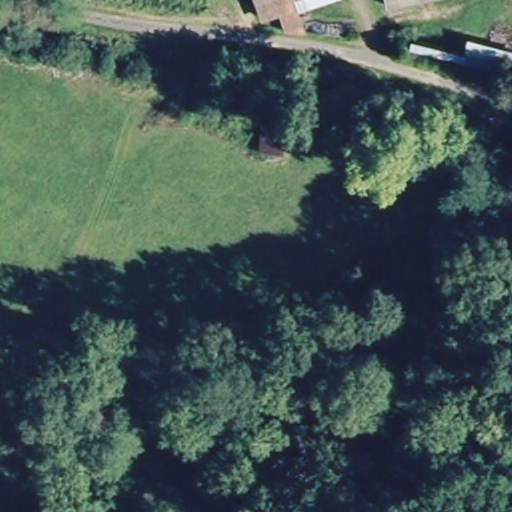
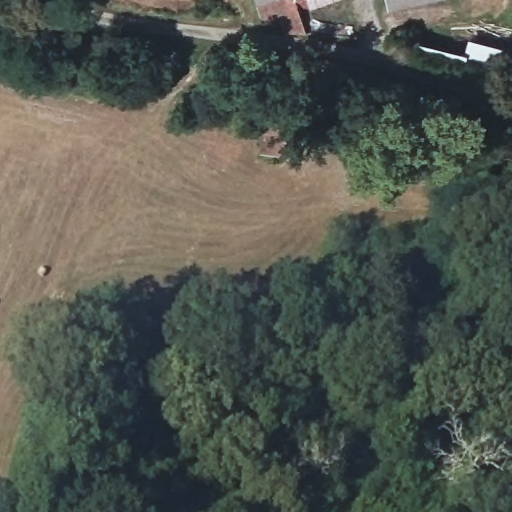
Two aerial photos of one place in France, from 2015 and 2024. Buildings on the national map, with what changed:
unchanged [(261,0),(304,0),(267,16),(261,0)]
unchanged [(389,0),(398,0),(390,2),(389,0)]
unchanged [(245,132),(260,130),(260,121),(288,123),(289,154),(261,157),(260,148),(246,147),(245,132)]

